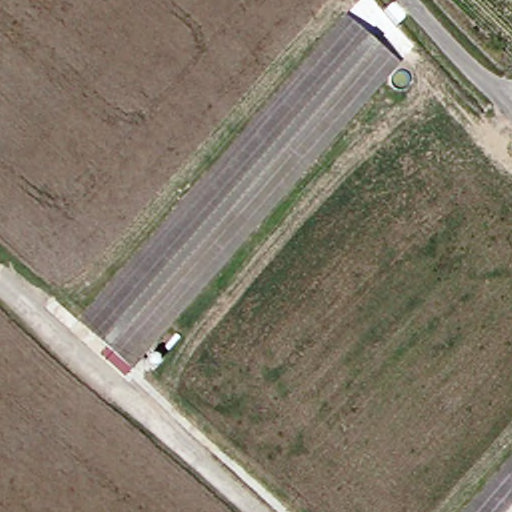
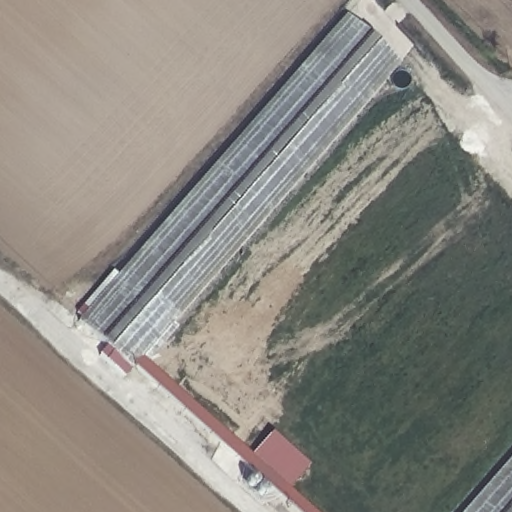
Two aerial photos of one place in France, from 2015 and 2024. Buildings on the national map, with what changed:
unchanged [(341,15),(391,59),(121,363),(72,319),(341,15)]
new [(289,488),(252,455),(273,433),(310,466),(289,488)]
unchanged [(512,512),(466,512),(512,459),(512,512)]

